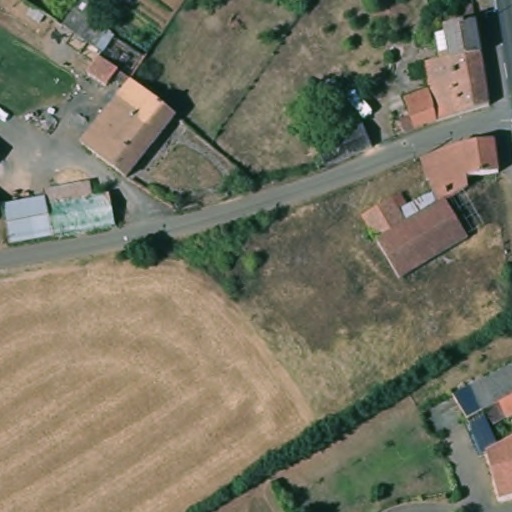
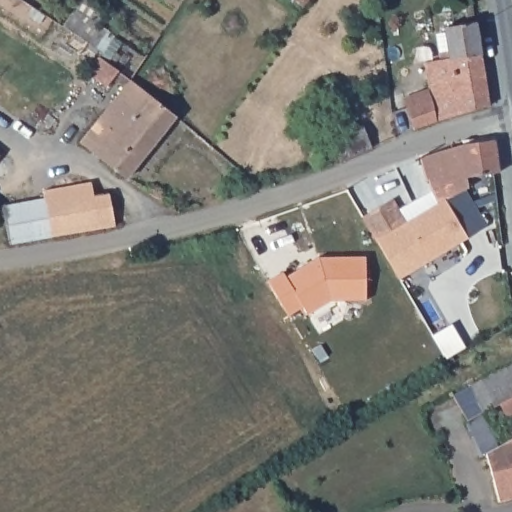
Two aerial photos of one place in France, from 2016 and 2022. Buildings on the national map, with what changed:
unchanged [(289,0),(304,0),(300,6),(289,0)]
unchanged [(447,117),(433,122),(420,127),(412,106),(438,97),(430,60),(455,56),(450,24),(481,19),(495,103),(447,117)]
unchanged [(127,182),(81,147),(84,144),(74,136),(97,107),(106,115),(125,92),(114,83),(108,91),(88,77),(99,62),(115,75),(133,86),(175,118),(177,120),(127,182)]
unchanged [(355,156),(345,159),(325,166),(321,157),(328,154),(322,142),(366,124),(378,144),(355,156)]
unchanged [(470,236),(400,281),(363,218),(393,200),(400,212),(434,196),(431,182),(428,182),(422,160),(433,155),(446,152),(458,148),(482,145),(495,142),(500,174),(470,178),(471,187),(466,191),(486,226),(470,236)]
unchanged [(57,241),(51,204),(50,196),(94,187),(98,201),(115,197),(120,229),(57,241)]
unchanged [(9,212),(51,204),(57,241),(16,248),(9,212)]
new [(283,273),(286,278),(318,258),(365,257),(366,301),(330,301),(307,315),(303,307),(288,317),(267,282),(283,273)]
unchanged [(477,402),(471,390),(512,367),(512,418),(509,420),(492,430),(483,413),(477,402)]
unchanged [(483,441),(495,434),(501,447),(512,441),(512,499),(500,502),(483,441)]

